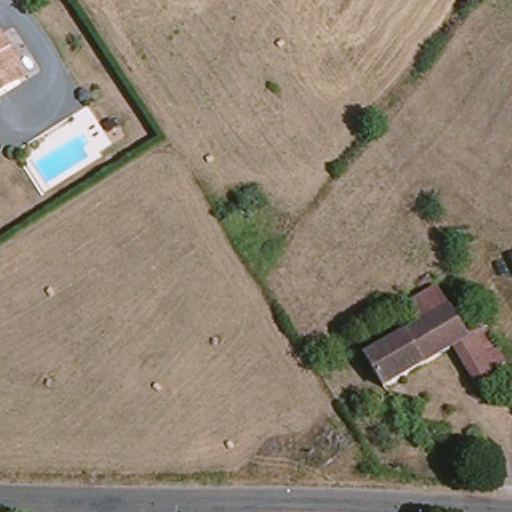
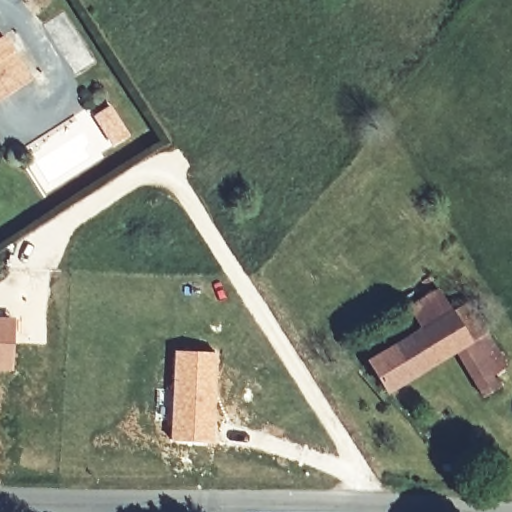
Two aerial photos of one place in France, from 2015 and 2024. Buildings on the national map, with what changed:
unchanged [(0,103),(0,36),(18,64),(31,84),(17,92),(0,103)]
unchanged [(411,309),(438,291),(448,308),(465,297),(487,340),(502,332),(512,347),(502,354),(510,365),(498,376),(502,382),(480,397),(450,352),(385,394),(365,363),(422,325),(411,309)]
new [(11,370),(0,370),(0,316),(14,316),(11,370)]
new [(172,349),(216,350),(213,441),(169,439),(172,349)]

